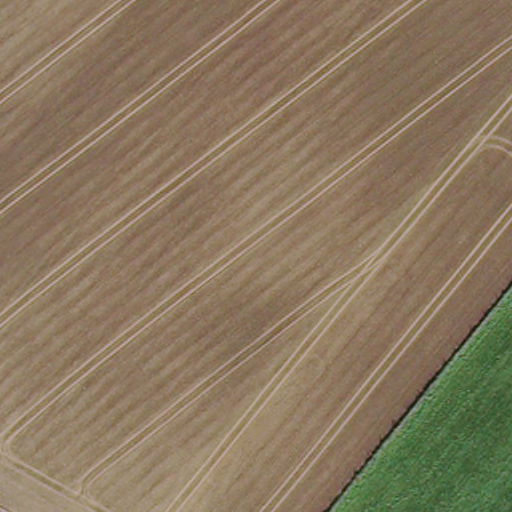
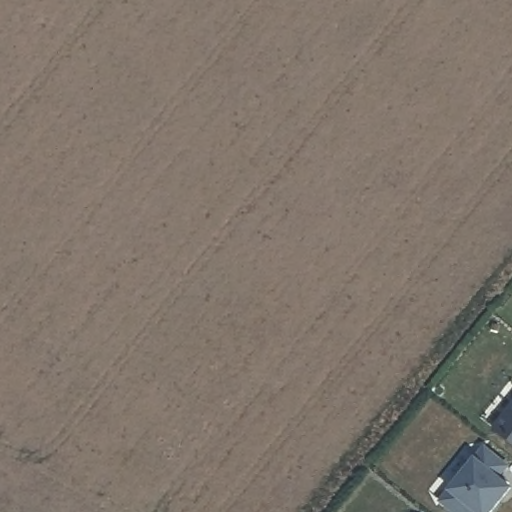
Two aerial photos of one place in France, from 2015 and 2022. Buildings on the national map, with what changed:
new [(512,409),(512,442),(496,430),(512,409)]
new [(507,466),(497,478),(510,488),(493,512),(451,512),(441,504),(484,448),(507,466)]

